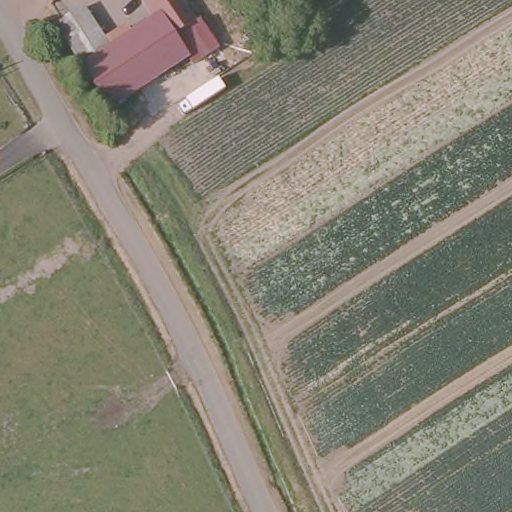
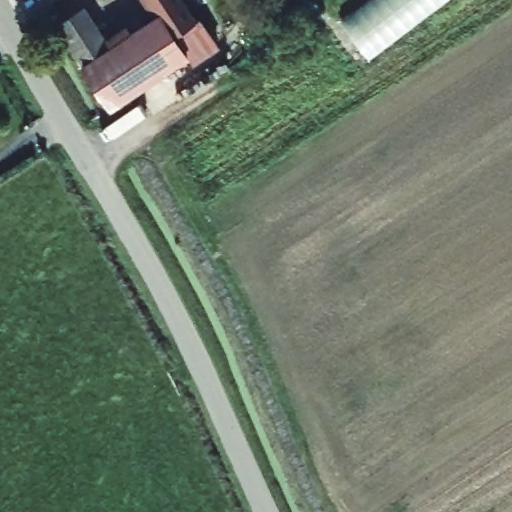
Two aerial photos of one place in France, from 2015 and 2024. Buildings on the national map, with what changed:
unchanged [(173,36),(185,56),(111,105),(56,20),(80,5),(106,47),(157,15),(147,0),(180,0),(195,23),(173,36)]
new [(366,0),(449,0),(369,61),(338,21),(366,0)]
unchanged [(201,19),(220,49),(191,66),(185,56),(173,36),(195,23),(201,19)]

